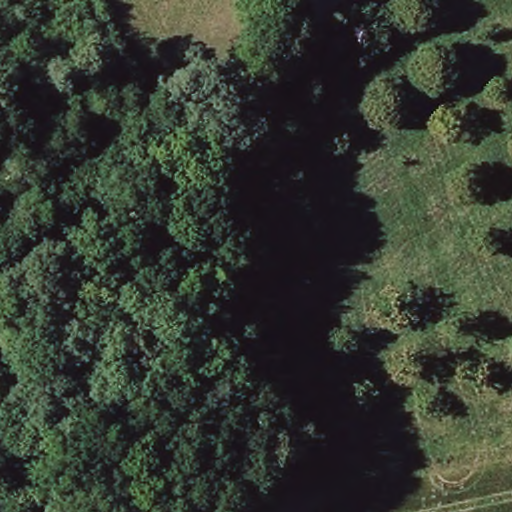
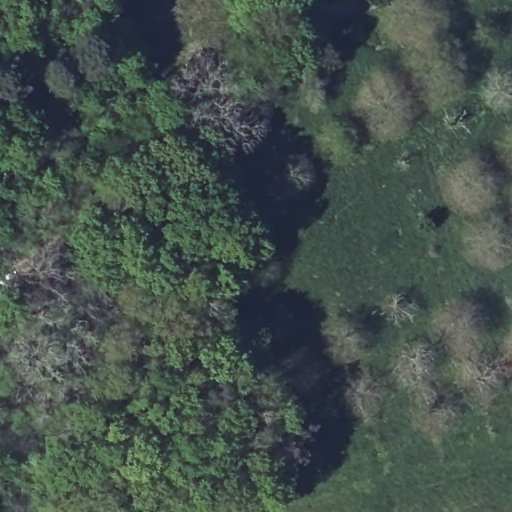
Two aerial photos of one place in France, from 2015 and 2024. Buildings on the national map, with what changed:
[]

